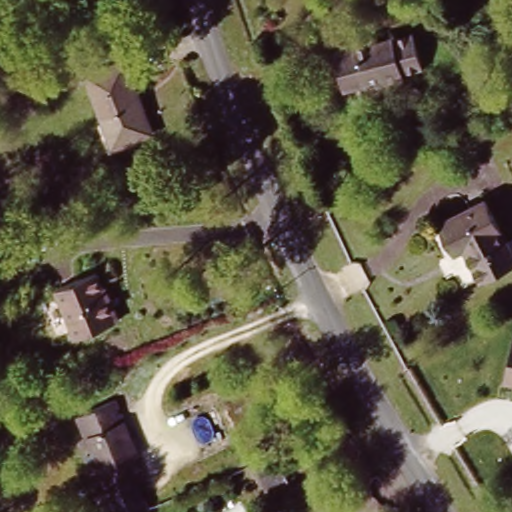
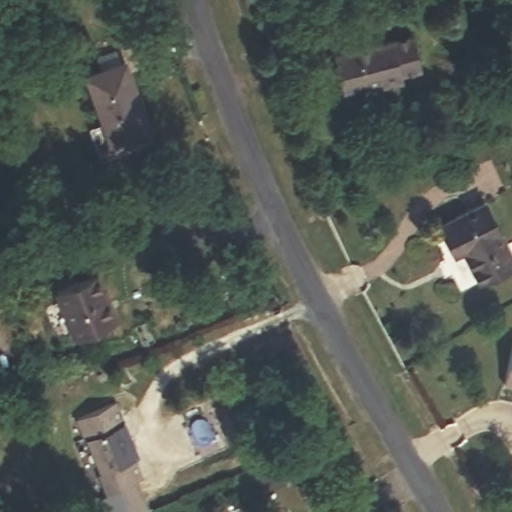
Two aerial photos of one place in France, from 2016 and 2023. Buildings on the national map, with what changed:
unchanged [(370,82),(346,91),(335,57),(390,39),(392,43),(412,37),(421,63),(401,70),(404,77),(394,80),(387,83),(372,88),(370,82)]
unchanged [(131,60),(153,127),(112,143),(90,75),(131,60)]
unchanged [(449,243),(440,225),(484,203),(512,259),(512,261),(481,277),(466,248),(454,253),(449,243)]
unchanged [(97,264),(114,312),(77,326),(62,278),(97,264)]
unchanged [(512,352),(512,383),(502,380),(512,352)]
unchanged [(116,495),(111,477),(114,476),(105,443),(96,446),(89,425),(128,409),(148,461),(143,463),(151,483),(160,480),(169,508),(160,512),(115,512),(110,497),(116,495)]
unchanged [(271,465),(278,483),(257,492),(250,473),(271,465)]

